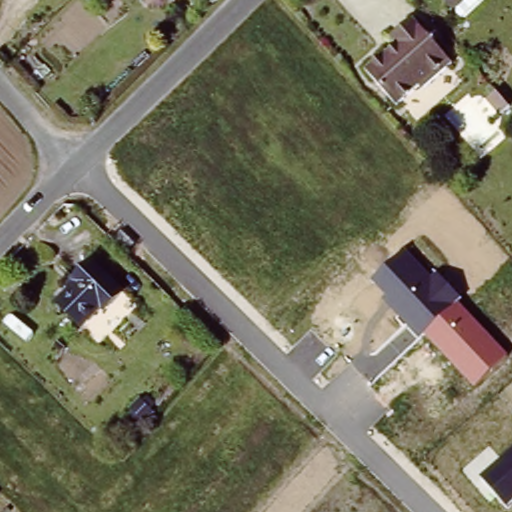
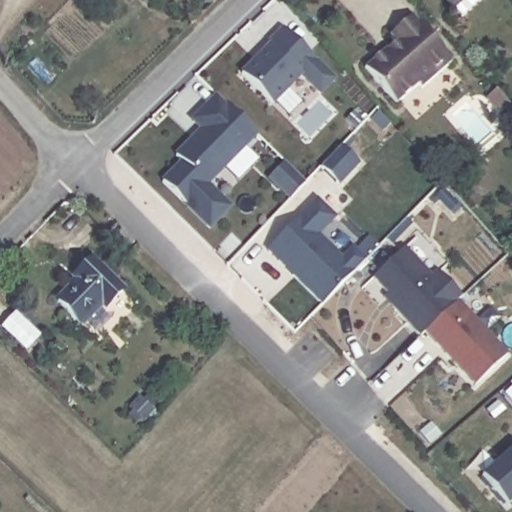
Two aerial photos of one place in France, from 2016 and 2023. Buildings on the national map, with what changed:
unchanged [(450,9),(442,0),(460,0),(450,9)]
unchanged [(419,92),(415,87),(395,105),(365,71),(387,52),(392,59),(399,52),(390,41),(412,21),(450,65),(441,72),(419,92)]
new [(268,44),(265,40),(281,26),(314,60),(317,59),(336,80),(320,96),(302,76),(273,105),(240,72),(268,44)]
new [(182,161),(175,154),(199,130),(190,121),(214,95),(257,137),(209,186),(232,209),(209,231),(185,207),(186,205),(162,181),(182,161)]
new [(335,218),(319,235),(342,257),(352,247),(365,260),(320,305),(267,251),(315,198),(335,218)]
unchanged [(475,386),(425,335),(420,338),(384,300),(389,295),(372,280),(405,250),(434,277),(439,273),(460,297),(455,302),(508,355),(475,386)]
unchanged [(97,307),(90,313),(78,327),(54,303),(74,283),(70,279),(88,261),(120,291),(101,311),(97,307)]
unchanged [(509,507),(480,477),(512,451),(512,504),(509,507)]

